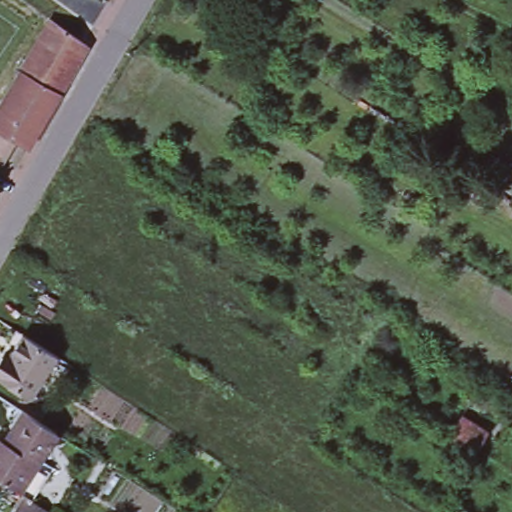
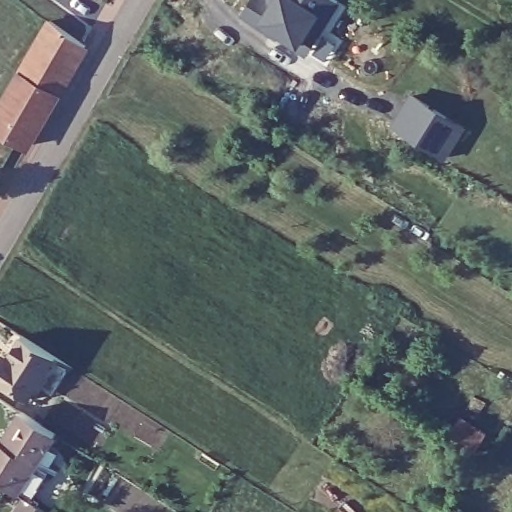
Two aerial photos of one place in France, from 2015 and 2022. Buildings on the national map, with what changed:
new [(242,13),(251,0),(339,0),(342,2),(308,55),(242,13)]
unchanged [(20,74),(50,23),(87,45),(56,96),(43,117),(27,144),(0,128),(0,107),(8,93),(20,74)]
new [(415,92),(467,127),(446,159),(393,124),(415,92)]
unchanged [(30,397),(27,396),(0,379),(0,353),(1,351),(6,354),(20,333),(53,355),(60,359),(55,367),(51,373),(47,371),(30,397)]
unchanged [(54,426),(37,453),(2,430),(20,404),(54,426)]
unchanged [(458,415),(483,432),(472,450),(446,434),(458,415)]
unchanged [(17,484),(7,478),(0,473),(0,434),(2,430),(37,453),(35,456),(47,464),(30,492),(17,484)]
unchanged [(44,512),(22,512),(16,508),(27,492),(48,505),(44,512)]

